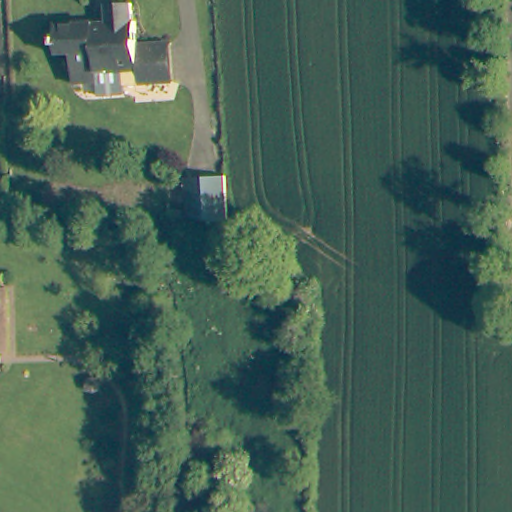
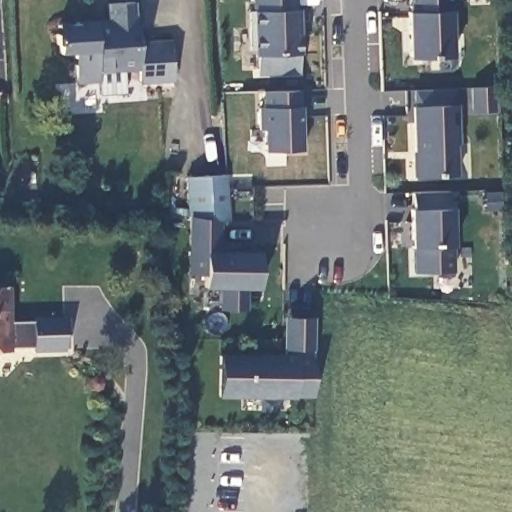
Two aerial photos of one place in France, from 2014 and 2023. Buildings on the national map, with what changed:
unchanged [(135,79),(134,65),(94,69),(95,78),(71,79),(69,49),(55,49),(54,40),(52,40),(51,30),(54,30),(53,21),(88,19),(88,25),(105,24),(104,1),(120,0),(128,0),(129,18),(131,17),(133,41),(158,39),(160,77),(135,79)]
new [(255,55),(252,11),(254,11),(254,0),(297,0),(301,53),(298,54),(298,74),(258,75),(255,55)]
new [(406,13),(409,13),(409,0),(456,0),(458,34),(452,35),(452,55),(409,58),(406,13)]
new [(414,105),(413,89),(454,88),(456,104),(458,104),(460,144),(455,144),(456,174),(414,177),(412,105),(414,105)]
new [(303,150),(265,150),(264,133),(259,125),(259,107),(262,107),(261,91),(301,89),(301,105),(303,150)]
demolished [(223,213),(183,214),(181,177),(221,174),(222,190),(223,213)]
new [(219,222),(222,250),(257,251),(259,288),(250,288),(248,309),(220,309),(219,287),(204,288),(203,273),(187,272),(188,214),(185,177),(227,174),(229,221),(219,222)]
new [(414,249),(411,249),(410,209),(412,209),(411,192),(450,190),(453,271),(414,273),(414,249)]
unchanged [(13,349),(0,349),(0,285),(11,284),(13,349)]
new [(281,354),(283,317),(315,317),(313,398),(219,397),(219,354),(281,354)]

